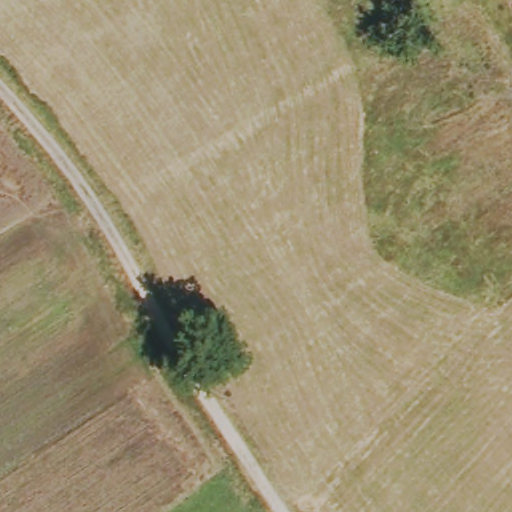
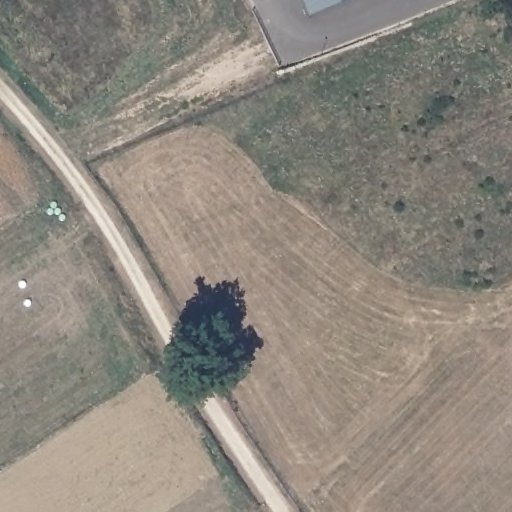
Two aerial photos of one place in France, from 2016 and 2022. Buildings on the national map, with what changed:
new [(311,14),(305,0),(347,0),(311,14)]

